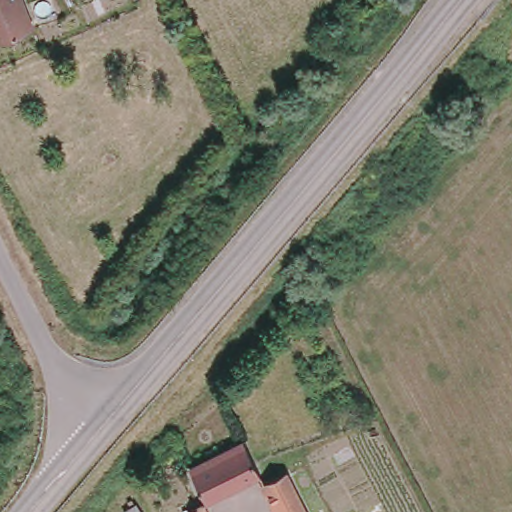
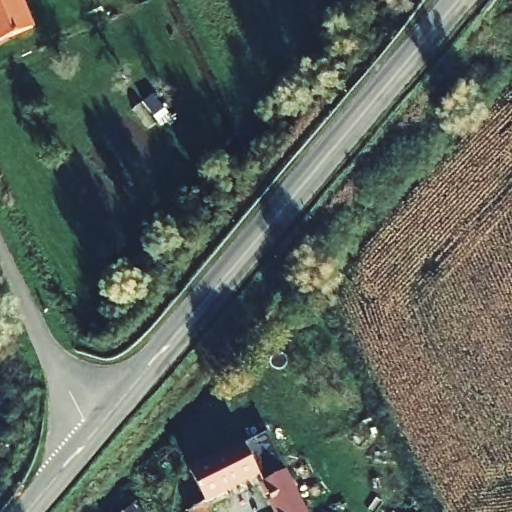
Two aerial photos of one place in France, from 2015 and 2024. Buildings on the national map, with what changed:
unchanged [(0,41),(0,0),(24,0),(37,26),(0,41)]
unchanged [(216,501),(201,472),(249,447),(265,477),(216,501)]
unchanged [(317,512),(285,512),(269,481),(291,470),(317,512)]
unchanged [(150,512),(131,512),(129,508),(144,500),(150,512)]
unchanged [(196,511),(209,504),(213,512),(196,512),(196,511)]

